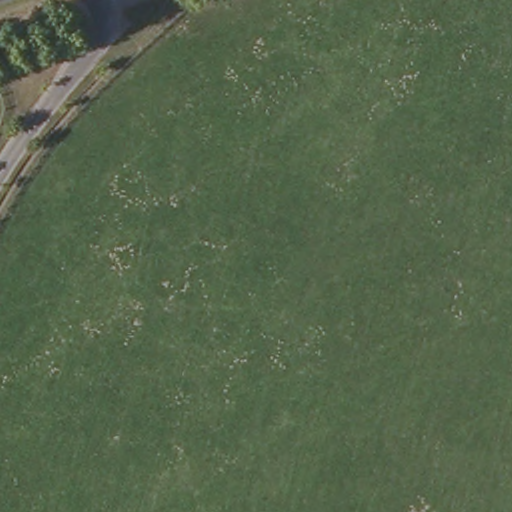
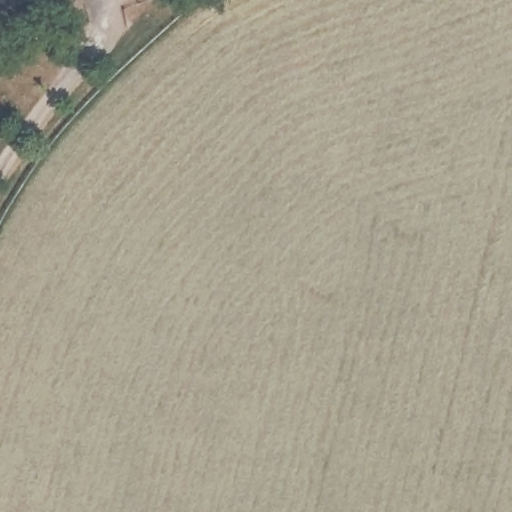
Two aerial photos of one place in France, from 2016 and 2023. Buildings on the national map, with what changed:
[]

